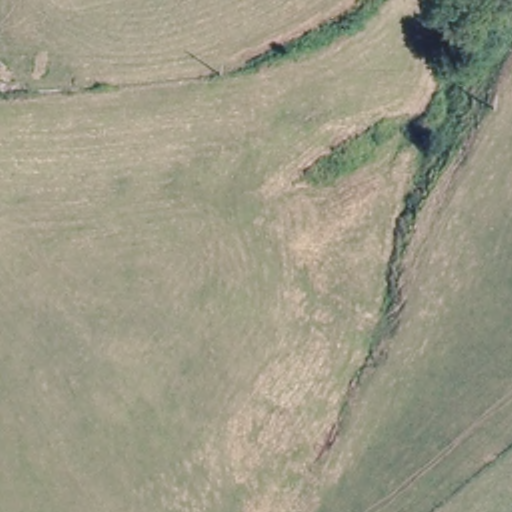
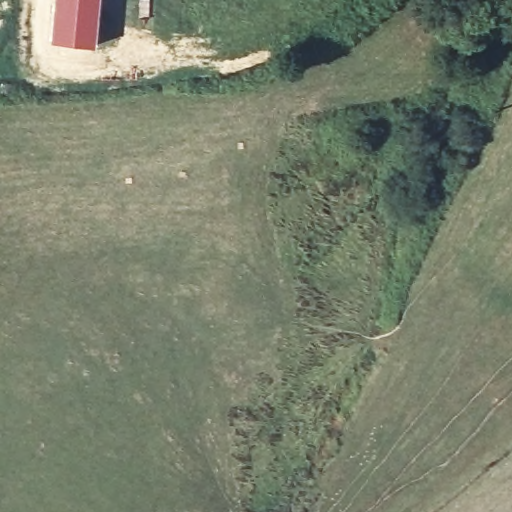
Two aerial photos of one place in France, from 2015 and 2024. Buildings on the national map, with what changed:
new [(55,0),(101,0),(97,44),(51,40),(55,0)]

